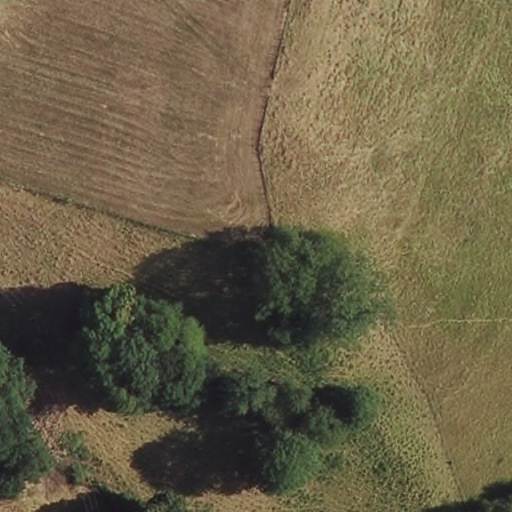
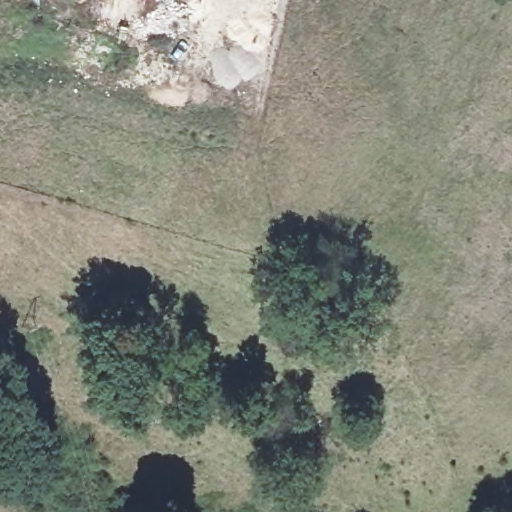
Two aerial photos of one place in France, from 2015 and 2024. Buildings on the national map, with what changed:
[]

